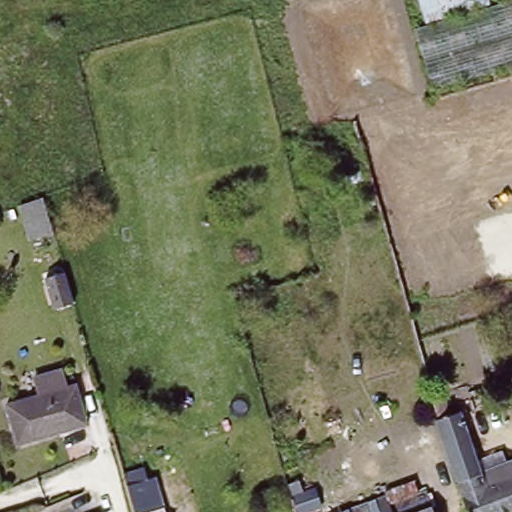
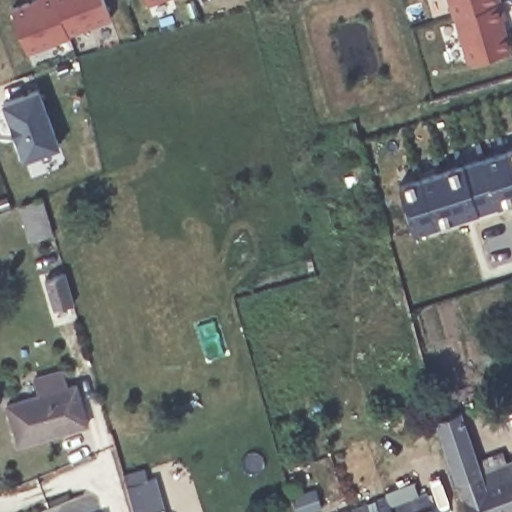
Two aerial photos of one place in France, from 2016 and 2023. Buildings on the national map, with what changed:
new [(31,0),(103,0),(109,18),(70,32),(70,36),(27,51),(10,8),(31,0)]
new [(146,0),(156,0),(147,4),(146,0)]
demolished [(413,0),(452,0),(416,10),(413,0)]
demolished [(482,0),(486,12),(422,31),(416,10),(452,0),(482,0)]
new [(449,0),(502,0),(507,17),(503,17),(511,47),(466,60),(449,0)]
demolished [(487,12),(512,3),(512,68),(427,95),(411,34),(422,31),(486,12),(487,12)]
new [(23,158),(3,101),(38,87),(59,146),(23,158)]
demolished [(355,123),(384,114),(389,130),(376,134),(379,144),(362,149),(355,123)]
new [(512,147),(512,198),(413,230),(398,183),(512,147)]
unchanged [(30,242),(20,205),(48,197),(57,234),(30,242)]
new [(65,275),(74,305),(55,311),(46,281),(65,275)]
unchanged [(80,426),(34,440),(33,437),(17,442),(7,405),(75,386),(81,406),(87,424),(80,426)]
unchanged [(486,407),(475,410),(472,397),(482,395),(486,407)]
unchanged [(438,422),(432,402),(442,398),(449,418),(462,415),(483,477),(512,465),(512,512),(466,512),(449,466),(444,451),(436,426),(435,423),(438,422)]
unchanged [(145,471),(148,479),(155,477),(166,512),(133,512),(123,477),(145,471)]
unchanged [(298,481),(302,493),(315,488),(322,508),(311,512),(296,512),(288,486),(298,481)]
unchanged [(386,495),(389,506),(428,492),(435,512),(341,512),(386,495)]

